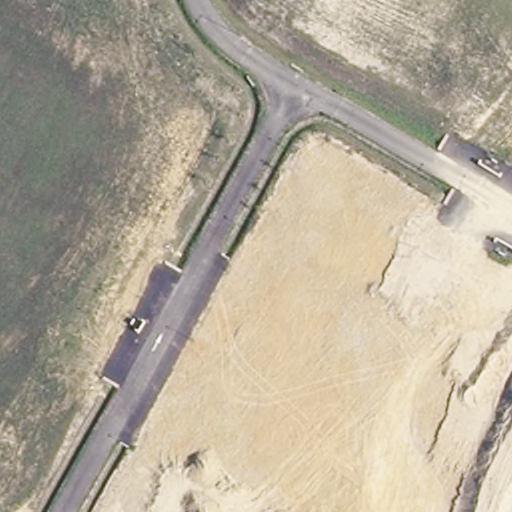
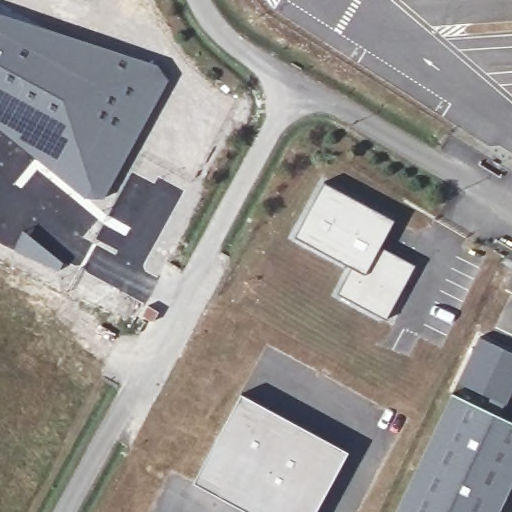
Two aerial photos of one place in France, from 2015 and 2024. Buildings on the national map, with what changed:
new [(159,66),(169,79),(116,180),(119,182),(121,179),(125,181),(106,214),(76,192),(23,146),(0,128),(0,11),(153,62),(159,66)]
new [(393,220),(378,248),(414,267),(387,319),(338,293),(351,268),(294,237),(324,183),(393,220)]
new [(24,230),(64,262),(56,273),(13,248),(24,230)]
new [(506,405),(458,382),(479,336),(512,352),(512,392),(506,405)]
unchanged [(512,423),(512,481),(497,512),(395,512),(451,393),(512,423)]
new [(193,483),(241,394),(348,452),(315,512),(245,512),(245,511),(193,483)]

